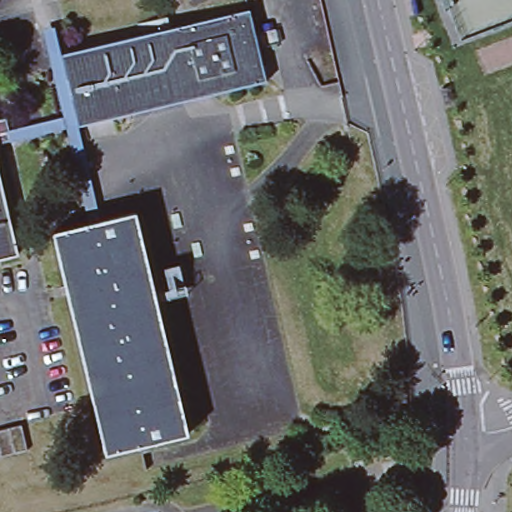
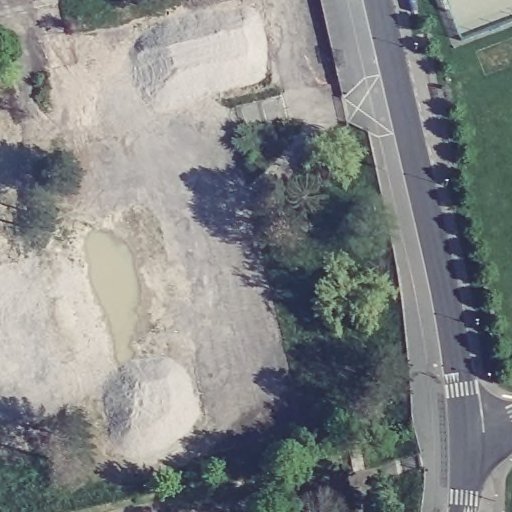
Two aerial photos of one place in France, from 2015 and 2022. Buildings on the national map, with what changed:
demolished [(262,82),(75,124),(58,52),(246,10),(262,82)]
demolished [(12,254),(0,257),(0,198),(12,254)]
demolished [(182,432),(100,450),(49,230),(131,212),(182,432)]

